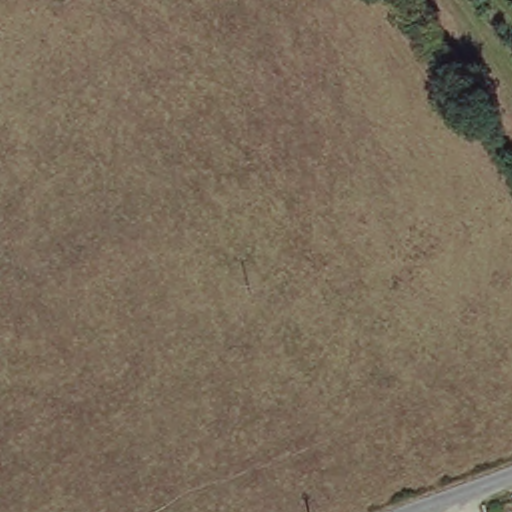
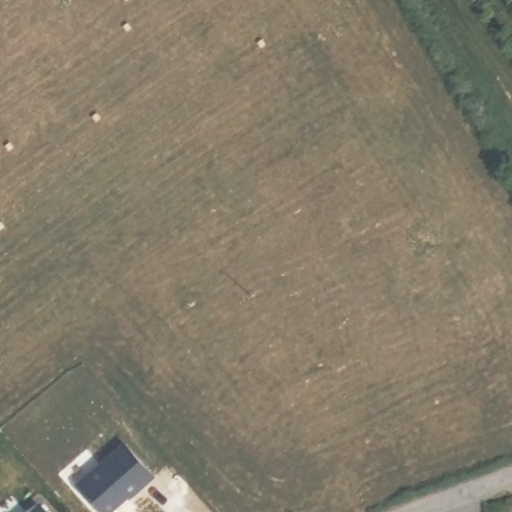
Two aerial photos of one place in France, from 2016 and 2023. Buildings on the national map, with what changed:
new [(118,444),(147,477),(121,500),(120,498),(104,512),(93,512),(70,486),(118,444)]
new [(32,506),(38,512),(25,512),(32,506)]

